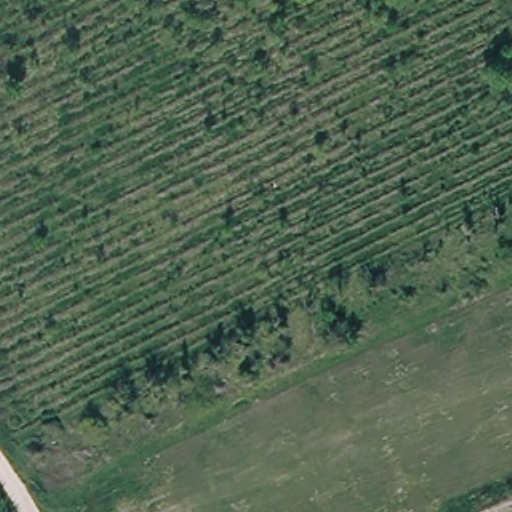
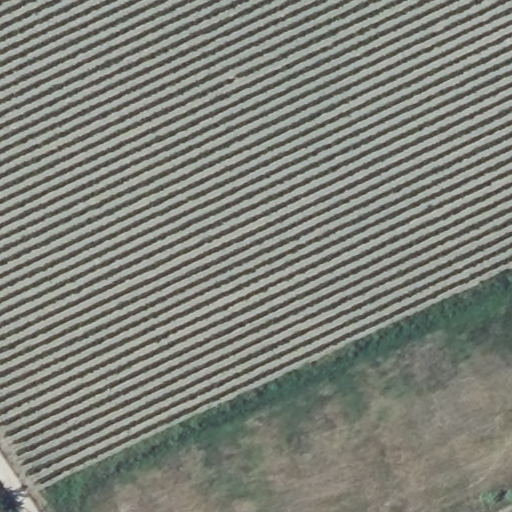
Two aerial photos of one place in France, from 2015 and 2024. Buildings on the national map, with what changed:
[]

